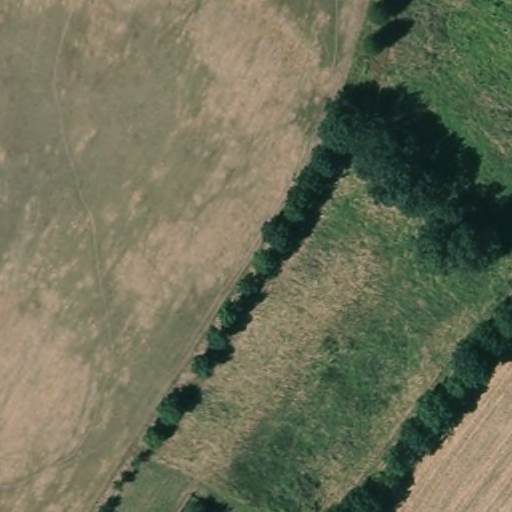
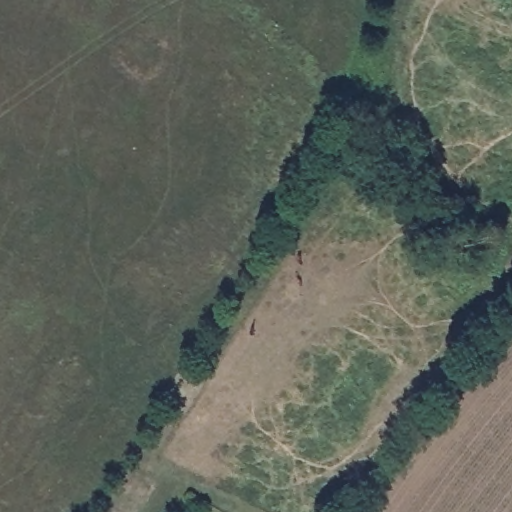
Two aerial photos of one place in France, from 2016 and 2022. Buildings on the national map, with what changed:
[]

